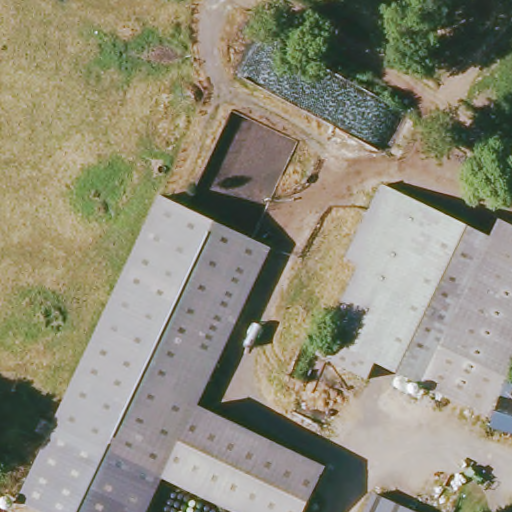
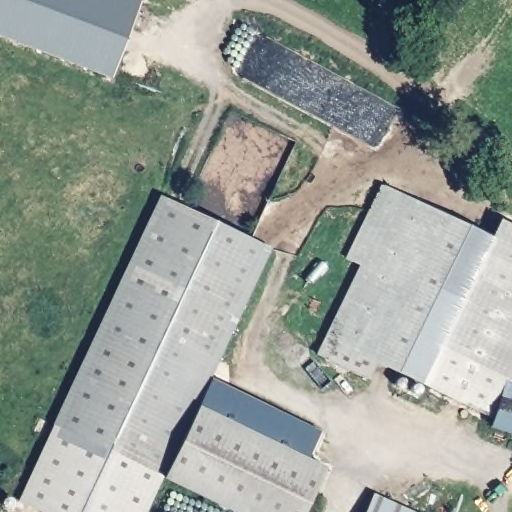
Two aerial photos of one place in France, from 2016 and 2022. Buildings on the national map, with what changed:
new [(112,79),(0,37),(0,0),(136,0),(141,2),(112,79)]
unchanged [(489,419),(371,362),(363,380),(312,354),(356,265),(341,258),(376,186),(485,239),(495,220),(512,228),(512,370),(509,377),(512,377),(512,434),(487,426),(489,419)]
unchanged [(325,468),(304,512),(236,512),(54,425),(161,196),(270,248),(195,407),(325,468)]
unchanged [(147,512),(43,512),(17,500),(54,425),(164,478),(147,512)]
unchanged [(407,512),(361,512),(369,495),(407,512)]

